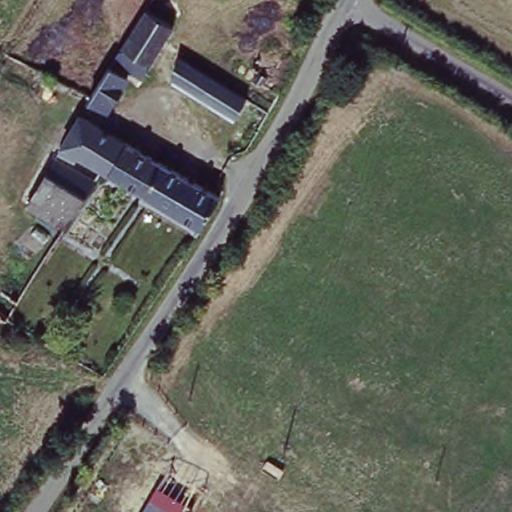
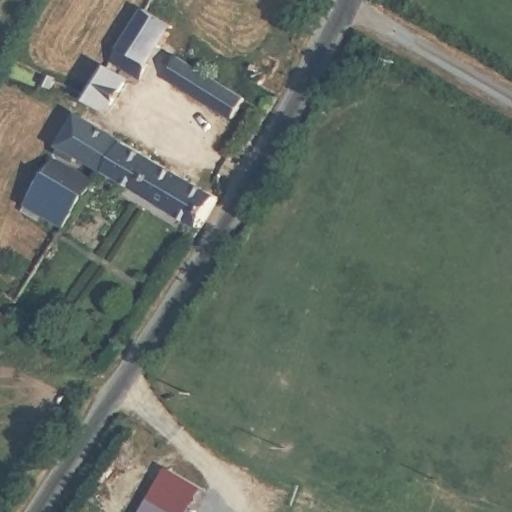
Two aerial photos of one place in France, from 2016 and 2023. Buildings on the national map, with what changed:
unchanged [(174,26),(150,63),(124,45),(147,5),(174,26)]
unchanged [(175,81),(178,58),(245,102),(234,121),(175,81)]
unchanged [(104,63),(127,79),(110,114),(83,98),(104,63)]
demolished [(45,79),(37,74),(40,69),(49,74),(45,79)]
unchanged [(199,231),(95,170),(74,158),(67,170),(88,181),(74,205),(37,184),(74,120),(214,204),(199,231)]
unchanged [(74,205),(61,227),(24,205),(37,184),(74,205)]
unchanged [(0,319),(0,292),(16,301),(5,321),(0,319)]
new [(169,468),(203,488),(190,512),(144,512),(169,468)]

